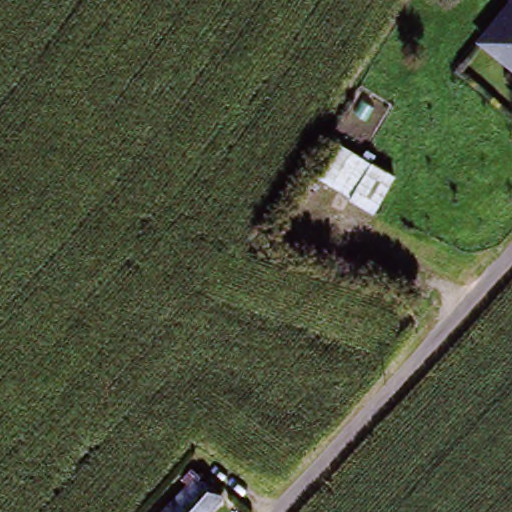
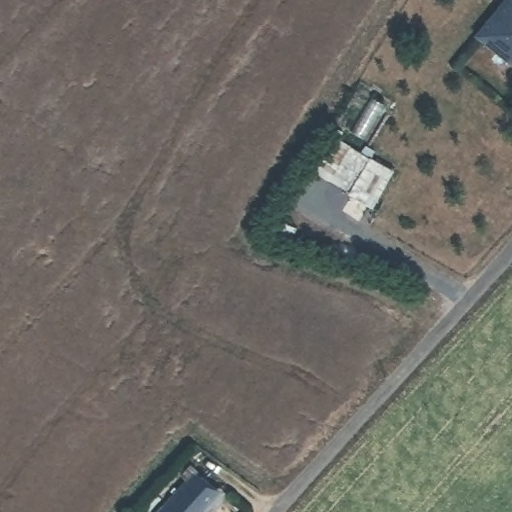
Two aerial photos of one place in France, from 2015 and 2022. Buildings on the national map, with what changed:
unchanged [(503,0),(512,0),(512,59),(477,34),(503,0)]
unchanged [(370,213),(345,199),(346,196),(329,186),(349,151),(369,160),(390,173),(370,213)]
unchanged [(217,488),(200,512),(167,512),(195,470),(217,488)]

